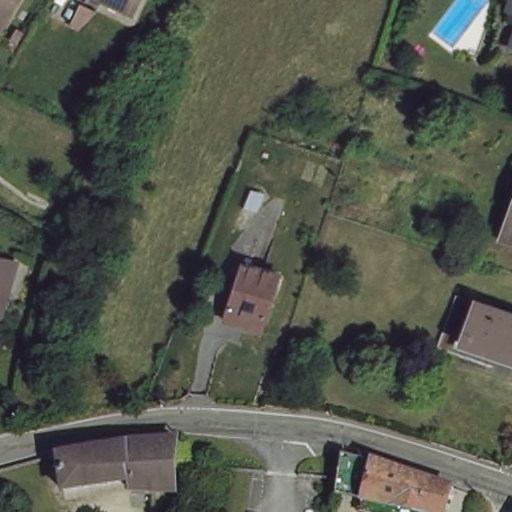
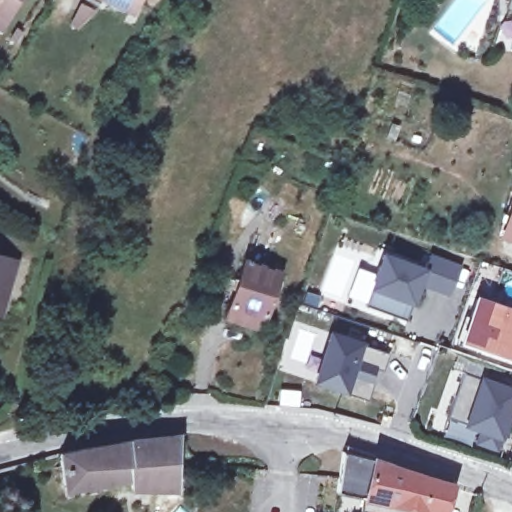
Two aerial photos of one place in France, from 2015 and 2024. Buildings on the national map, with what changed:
unchanged [(0,32),(0,0),(21,0),(7,22),(2,32),(0,32)]
unchanged [(132,11),(111,0),(137,0),(132,11)]
unchanged [(512,228),(512,240),(508,239),(512,228)]
new [(350,297),(360,270),(378,276),(385,255),(427,268),(431,254),(463,265),(455,293),(423,283),(410,321),(368,307),(369,304),(350,297)]
unchanged [(0,311),(0,256),(18,261),(5,312),(0,311)]
unchanged [(213,318),(232,261),(287,278),(269,336),(213,318)]
unchanged [(512,356),(463,341),(478,298),(512,309),(512,356)]
new [(385,373),(374,370),(370,381),(376,382),(370,402),(345,395),(346,392),(317,383),(332,336),(391,355),(385,373)]
new [(512,409),(498,450),(480,443),(483,432),(448,419),(464,374),(512,391),(512,409)]
unchanged [(127,440),(185,435),(183,494),(130,490),(63,493),(60,450),(127,440)]
unchanged [(340,494),(341,484),(344,452),(410,468),(453,482),(448,512),(366,512),(367,500),(340,494)]

